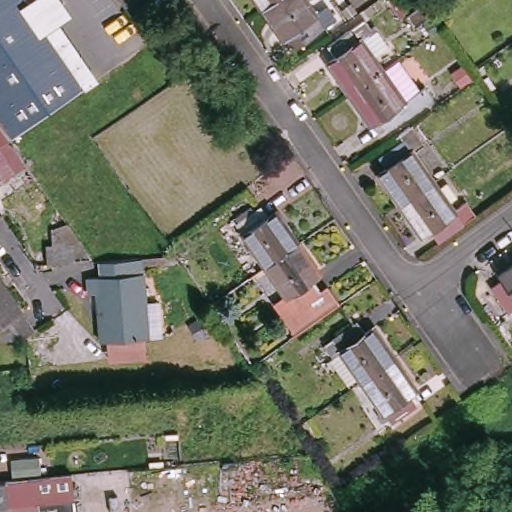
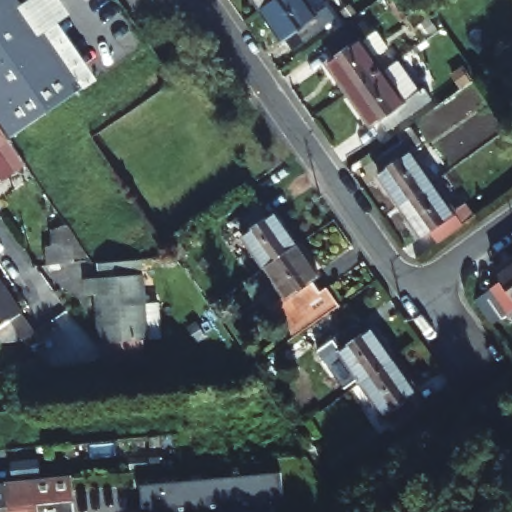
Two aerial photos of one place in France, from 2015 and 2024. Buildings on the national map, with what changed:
unchanged [(85,84),(14,135),(0,115),(0,0),(26,0),(85,84)]
unchanged [(262,10),(254,0),(276,0),(262,10)]
unchanged [(321,30),(297,46),(290,35),(282,40),(262,10),(276,0),(300,0),(321,30)]
unchanged [(352,92),(330,62),(339,56),(332,46),(355,30),(384,70),(352,92)]
unchanged [(415,112),(390,128),(383,117),(374,123),(352,92),(384,70),(415,112)]
unchanged [(0,153),(0,120),(29,160),(12,171),(0,153)]
unchanged [(405,207),(384,176),(390,173),(384,164),(408,146),(436,186),(405,207)]
unchanged [(0,180),(0,153),(12,171),(0,180)]
unchanged [(465,229),(442,244),(435,235),(428,240),(405,207),(436,186),(465,229)]
unchanged [(269,268),(240,228),(263,211),(271,220),(279,215),(300,246),(269,268)]
unchanged [(55,265),(54,246),(82,247),(83,263),(55,265)]
unchanged [(298,332),(289,318),(299,310),(269,268),(300,246),(322,277),(315,282),(323,293),(332,286),(342,300),(298,332)]
unchanged [(109,343),(107,305),(104,305),(102,284),(94,284),(93,268),(105,267),(105,252),(130,251),(147,250),(152,340),(109,343)]
unchanged [(489,281),(500,273),(494,265),(512,252),(512,300),(505,305),(489,281)]
unchanged [(0,341),(0,279),(15,301),(35,330),(25,340),(0,341)]
unchanged [(337,361),(349,353),(340,341),(364,325),(372,335),(380,330),(402,361),(370,383),(367,379),(356,387),(337,361)]
unchanged [(423,390),(416,395),(424,406),(400,424),(370,383),(402,361),(423,390)]
new [(275,494),(277,504),(269,505),(269,512),(147,512),(147,506),(139,507),(137,485),(278,470),(280,493),(275,494)]
unchanged [(69,482),(71,512),(0,512),(0,489),(69,482)]

